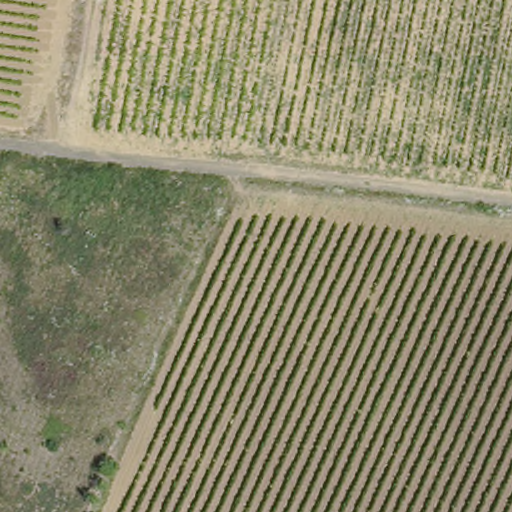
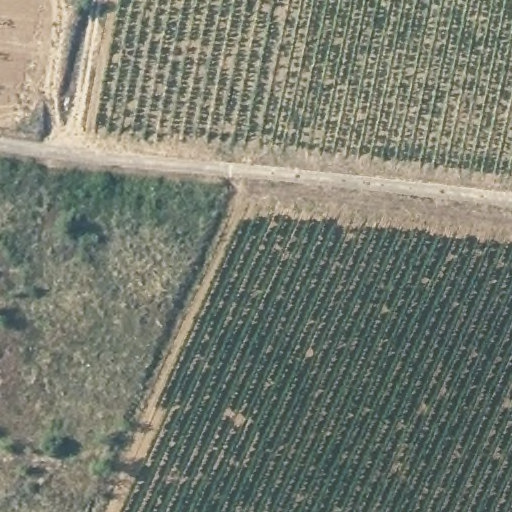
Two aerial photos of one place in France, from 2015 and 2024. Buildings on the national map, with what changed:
[]

